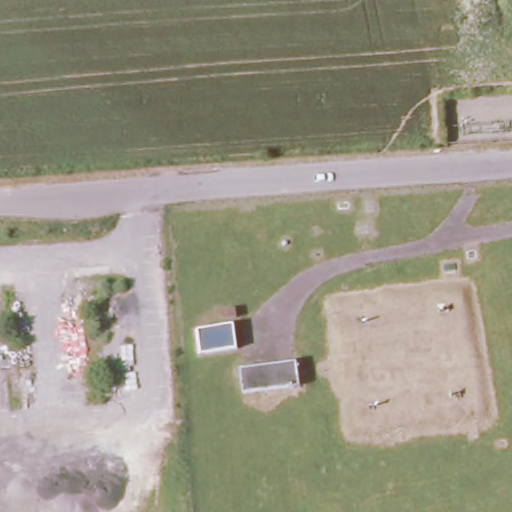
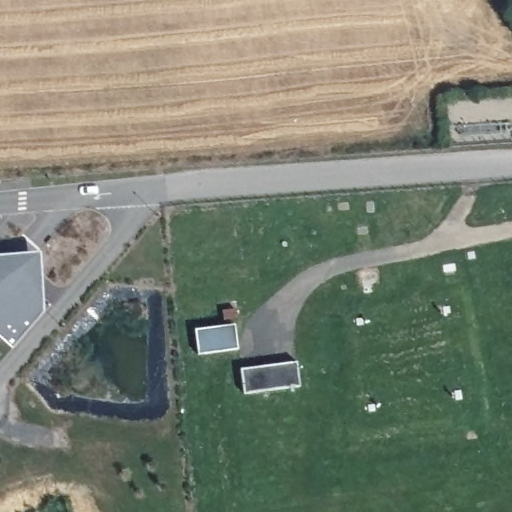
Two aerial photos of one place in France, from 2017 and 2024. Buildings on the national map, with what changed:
new [(45,312),(11,350),(0,339),(0,254),(39,252),(45,312)]
unchanged [(184,325),(233,319),(241,350),(193,356),(184,325)]
unchanged [(302,386),(243,391),(241,364),(299,360),(302,386)]

